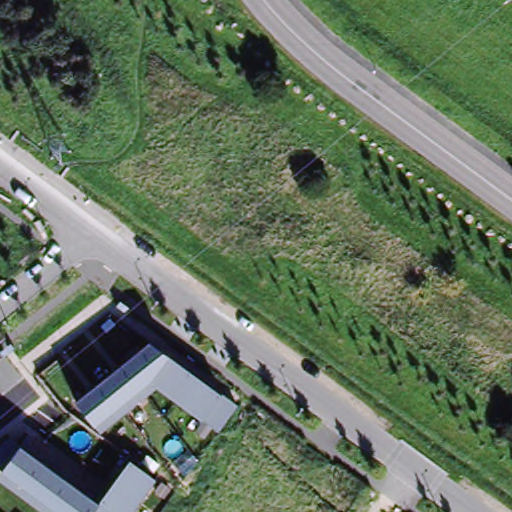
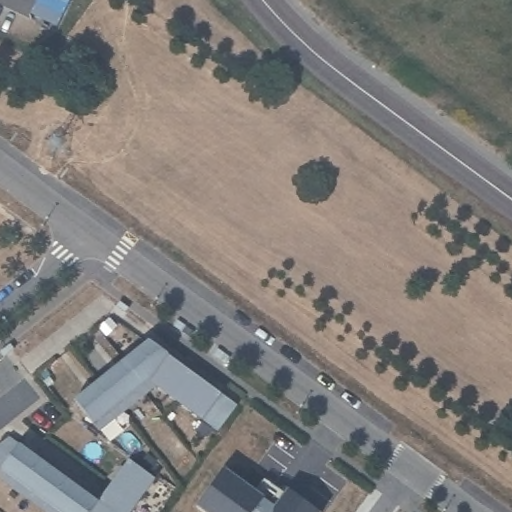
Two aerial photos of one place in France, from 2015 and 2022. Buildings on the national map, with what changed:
unchanged [(148,341),(240,407),(219,432),(157,391),(98,437),(74,403),(148,341)]
unchanged [(129,460),(154,477),(130,512),(44,512),(0,478),(0,472),(22,444),(100,502),(129,460)]
new [(202,506),(225,473),(265,502),(264,503),(275,512),(211,512),(202,506)]
new [(289,494),(314,512),(276,512),(289,494)]

